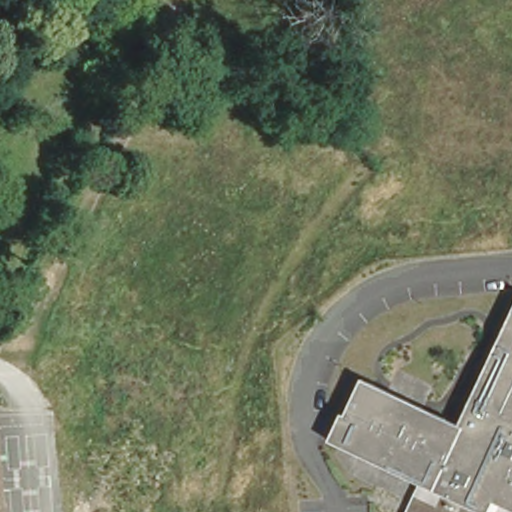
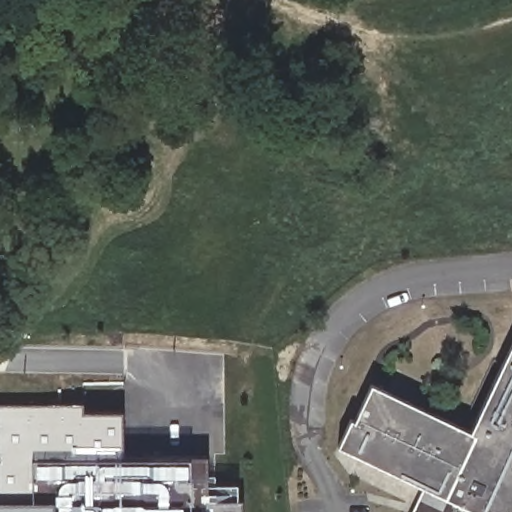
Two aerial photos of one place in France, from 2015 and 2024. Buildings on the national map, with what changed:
unchanged [(429,489),(337,448),(348,422),(355,420),(369,386),(471,430),(512,343),(512,512),(417,512),(429,489)]
new [(76,411),(115,410),(116,450),(202,452),(203,496),(242,496),(243,512),(0,512),(0,498),(25,498),(25,453),(0,453),(0,401),(75,400),(76,411)]

